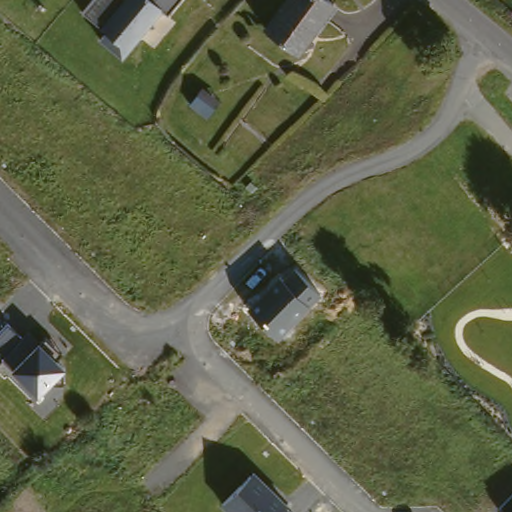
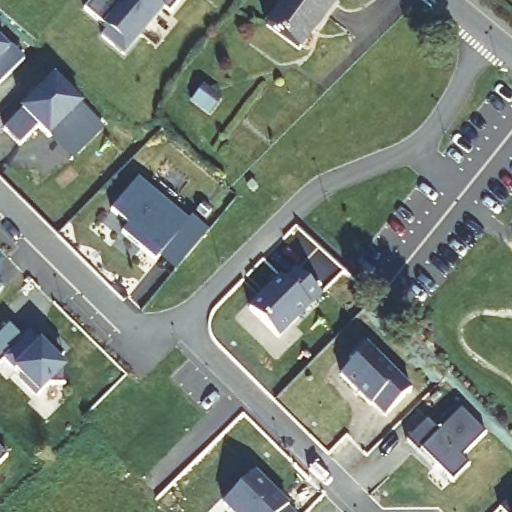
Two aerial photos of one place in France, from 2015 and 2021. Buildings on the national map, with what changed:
unchanged [(182,0),(172,14),(167,10),(125,59),(99,39),(108,28),(81,6),(88,0),(182,0)]
unchanged [(271,25),(294,0),(334,0),(341,6),(297,52),(271,25)]
new [(21,62),(0,85),(0,41),(10,50),(21,62)]
new [(50,139),(38,128),(20,147),(3,131),(21,112),(55,78),(83,104),(80,108),(103,131),(71,162),(50,139)]
new [(123,234),(129,226),(111,212),(138,180),(189,222),(194,216),(209,230),(175,271),(158,256),(155,261),(123,234)]
unchanged [(281,339),(249,309),(280,277),(284,280),(293,270),(320,298),(281,339)]
new [(0,291),(0,283),(4,287),(0,291)]
unchanged [(11,369),(6,374),(0,368),(0,332),(10,323),(23,336),(28,331),(40,344),(46,337),(61,353),(54,359),(68,370),(39,397),(11,369)]
new [(372,404),(340,372),(367,345),(411,390),(385,417),(372,404)]
new [(437,465),(433,469),(406,441),(429,419),(440,431),(463,409),(486,431),(462,457),(469,464),(453,481),(437,465)]
new [(0,462),(0,449),(6,455),(0,462)]
unchanged [(224,505),(256,472),(290,507),(287,510),(288,512),(230,512),(224,505)]

